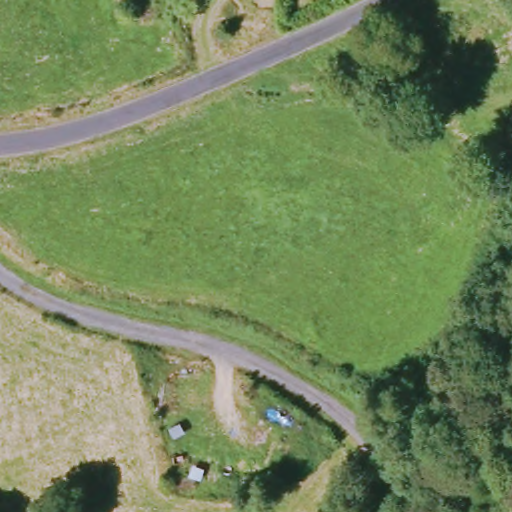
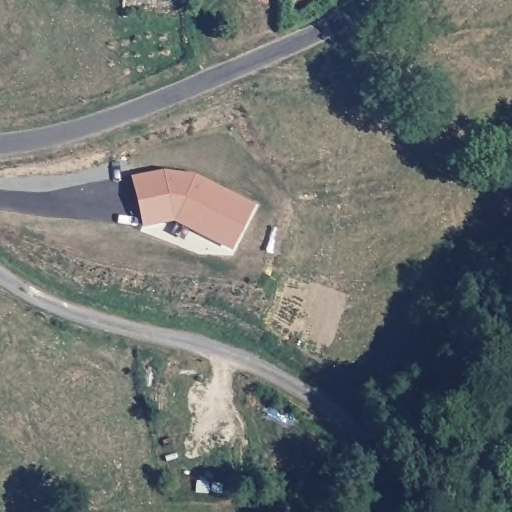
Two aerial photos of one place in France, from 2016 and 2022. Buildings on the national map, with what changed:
new [(165,171),(196,175),(255,206),(231,252),(173,223),(142,228),(132,177),(165,171)]

